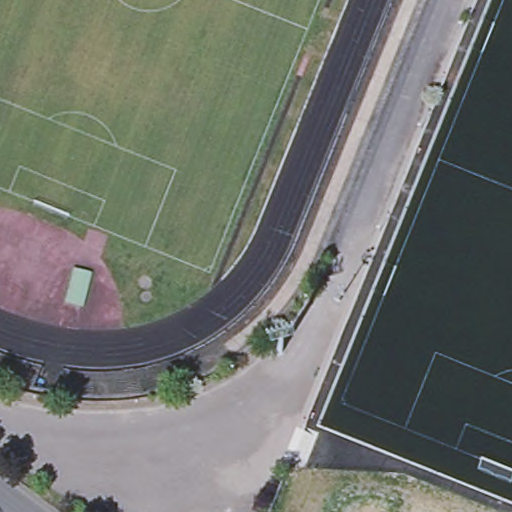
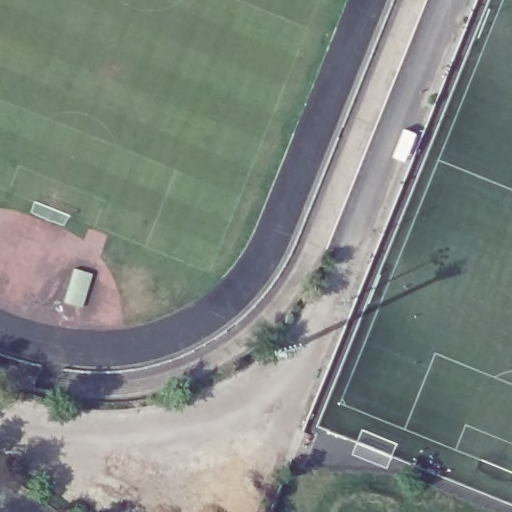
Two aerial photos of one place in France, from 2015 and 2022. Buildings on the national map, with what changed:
unchanged [(383,102),(316,267),(297,299),(282,319),(253,347),(235,360),(217,371),(199,380),(176,388),(135,397),(104,400),(62,397),(67,383),(86,387),(120,387),(145,383),(167,378),(185,372),(205,362),(225,351),(240,341),(252,331),(270,312),(284,296),(292,283),(298,273),(308,253),(410,0),(426,0),(383,102)]
unchanged [(35,386),(32,397),(15,393),(1,389),(0,389),(0,375),(7,378),(35,386)]

